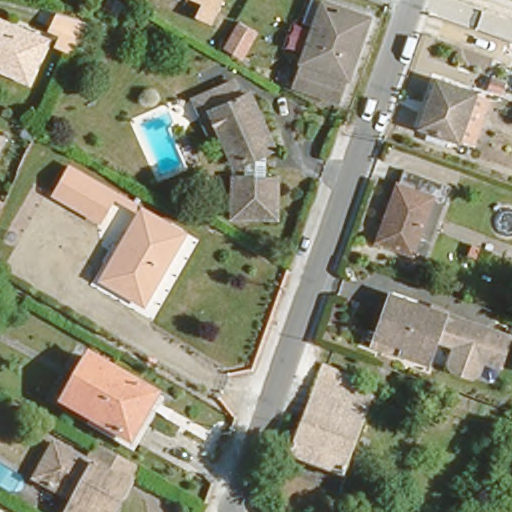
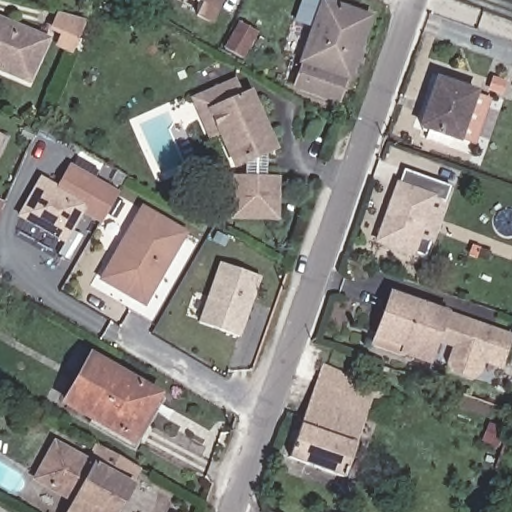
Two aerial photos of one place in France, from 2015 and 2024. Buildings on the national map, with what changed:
unchanged [(196,16),(203,3),(197,0),(225,0),(214,24),(196,16)]
unchanged [(286,66),(297,69),(313,22),(302,18),(308,0),(339,0),(368,9),(337,98),(281,80),(286,66)]
unchanged [(55,38),(61,26),(49,21),(56,7),(79,18),(66,44),(55,38)]
unchanged [(25,74),(0,62),(0,14),(44,35),(25,74)]
unchanged [(421,120),(437,72),(477,86),(462,133),(421,120)]
unchanged [(219,138),(209,145),(184,109),(194,103),(219,85),(227,98),(236,92),(270,142),(266,146),(259,178),(272,180),(267,210),(265,219),(228,212),(232,190),(237,164),(219,138)]
unchanged [(100,214),(54,187),(70,160),(116,187),(100,214)]
unchanged [(431,241),(425,258),(375,240),(400,165),(449,182),(443,199),(431,195),(417,235),(431,241)]
unchanged [(96,272),(137,202),(183,227),(140,298),(96,272)]
new [(220,263),(261,275),(242,336),(202,324),(220,263)]
unchanged [(395,303),(396,298),(439,313),(486,329),(511,338),(503,360),(503,362),(485,356),(478,374),(472,377),(453,371),(450,364),(457,345),(439,339),(432,363),(422,359),(408,354),(406,360),(379,350),(395,303)]
unchanged [(128,435),(61,397),(88,352),(161,394),(146,420),(136,439),(128,435)]
unchanged [(373,380),(344,479),(285,456),(321,362),(373,380)]
unchanged [(76,507),(37,484),(57,449),(89,466),(98,449),(141,473),(120,512),(73,512),(76,507)]

